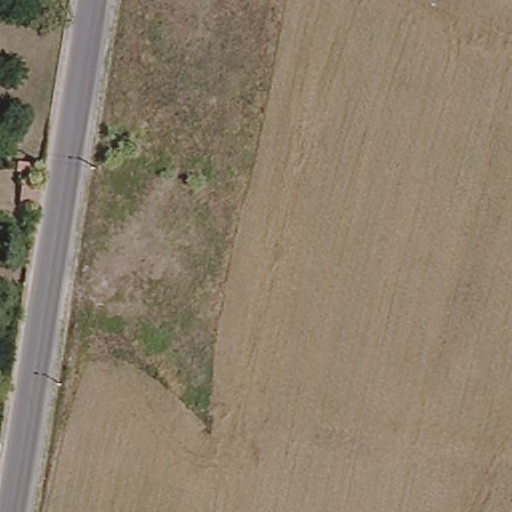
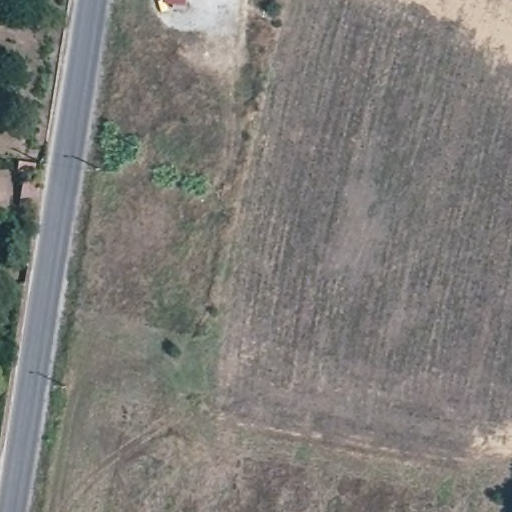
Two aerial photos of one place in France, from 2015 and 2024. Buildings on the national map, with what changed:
unchanged [(20,162),(38,164),(37,173),(19,171),(20,162)]
unchanged [(24,203),(27,182),(44,185),(41,206),(24,203)]

